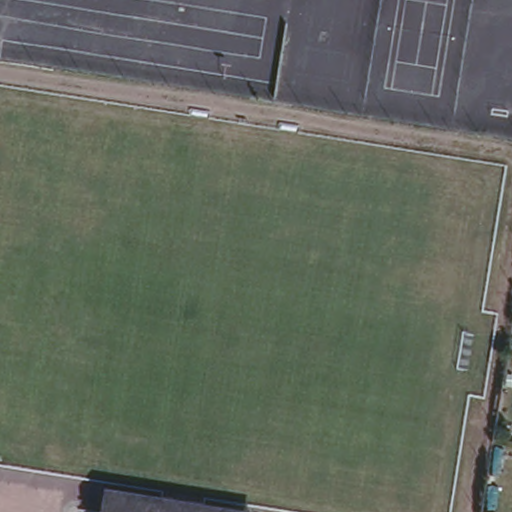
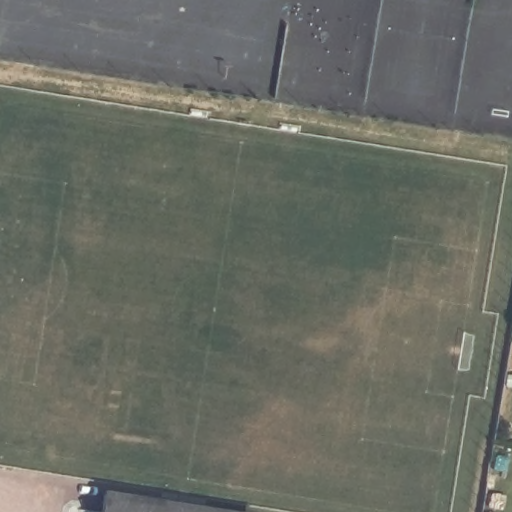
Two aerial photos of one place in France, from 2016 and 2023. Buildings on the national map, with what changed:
unchanged [(260,512),(105,512),(108,488),(260,512)]

